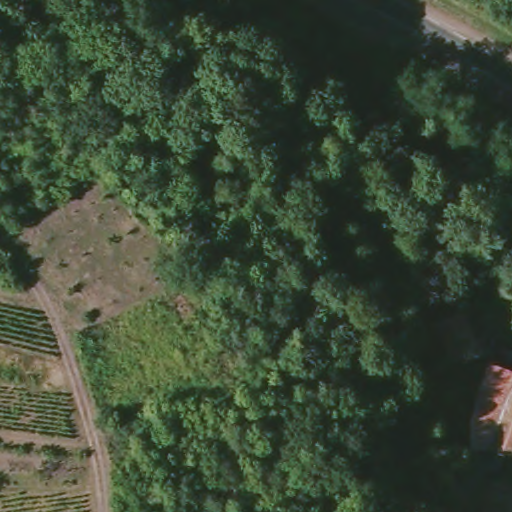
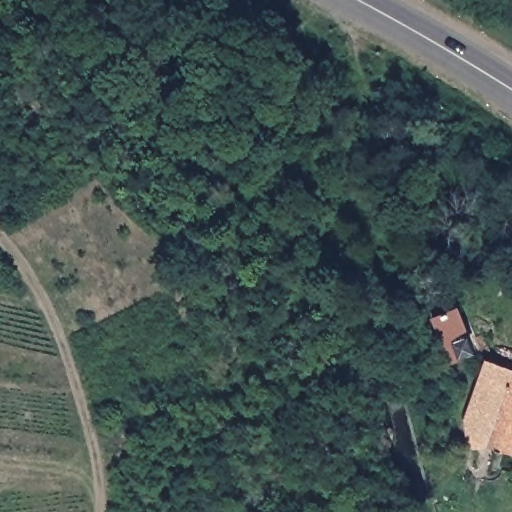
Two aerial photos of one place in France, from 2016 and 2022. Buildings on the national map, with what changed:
unchanged [(437,316),(459,306),(467,324),(474,322),(478,332),(484,329),(491,346),(469,354),(469,352),(463,354),(463,352),(453,356),(437,316)]
unchanged [(487,443),(470,445),(469,417),(488,355),(512,366),(512,449),(487,443)]

